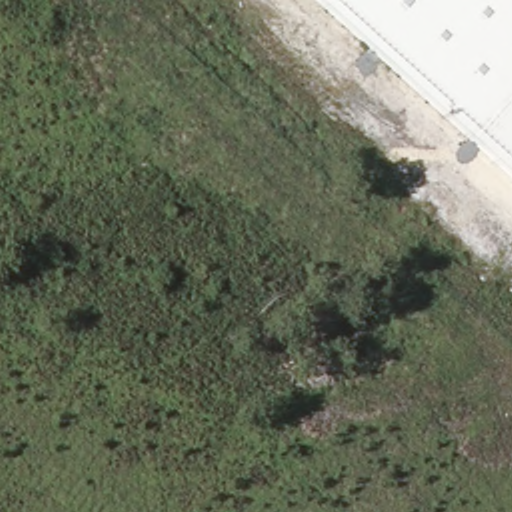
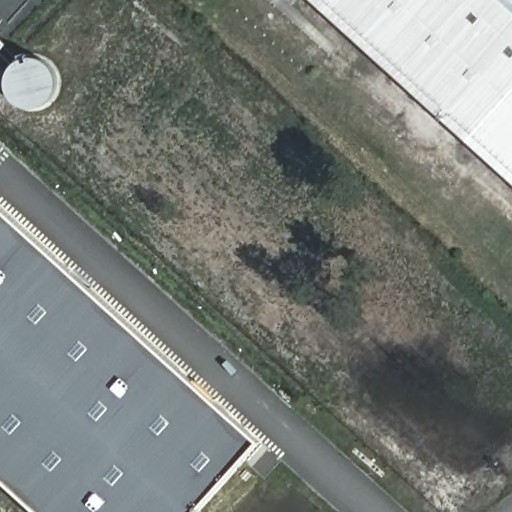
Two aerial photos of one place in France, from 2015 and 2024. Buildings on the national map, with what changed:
unchanged [(512,0),(512,95),(471,140),(316,0),(512,0)]
new [(2,45),(0,47),(0,42),(2,45)]
new [(36,57),(45,60),(53,69),(58,80),(59,91),(55,100),(47,106),(36,110),(23,109),(16,105),(10,97),(6,90),(6,80),(9,70),(14,62),(28,57),(36,57)]
unchanged [(512,95),(512,177),(471,140),(512,95)]
new [(262,441),(200,512),(39,512),(0,477),(0,202),(262,441)]

